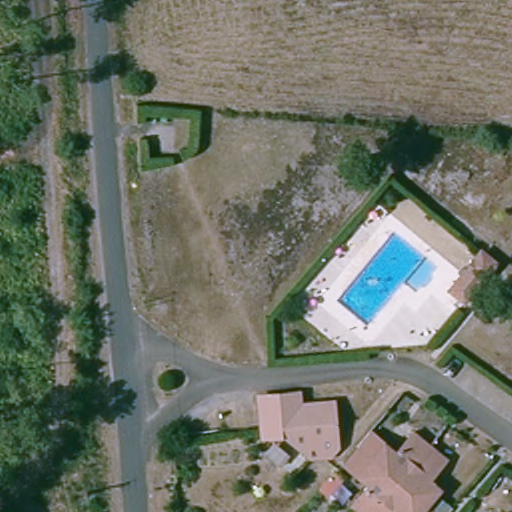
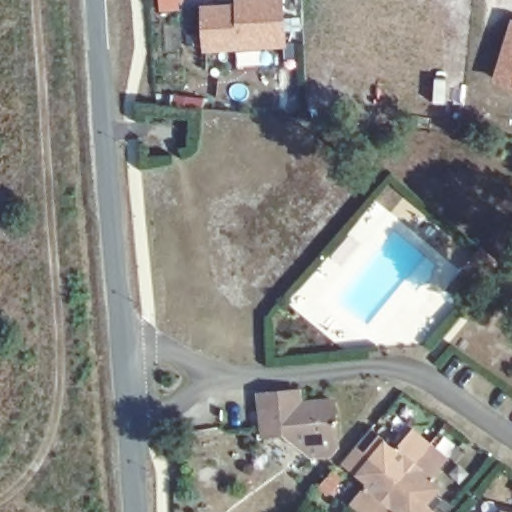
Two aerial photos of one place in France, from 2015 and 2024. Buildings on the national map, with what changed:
new [(235,0),(285,0),(287,47),(204,52),(201,6),(235,4),(235,0)]
new [(492,82),(512,20),(512,87),(492,82)]
unchanged [(502,263),(469,306),(450,292),(485,251),(502,263)]
unchanged [(340,451),(327,463),(309,463),(283,443),(262,444),(262,406),(262,395),(302,396),(301,407),(340,408),(340,451)]
unchanged [(353,511),(364,498),(372,488),(358,475),(346,464),(359,448),(374,432),(400,452),(417,432),(434,446),(450,460),(440,472),(432,481),(445,490),(430,506),(441,512),(354,512),(353,511)]
unchanged [(342,480),(350,487),(337,501),(330,494),(342,480)]

